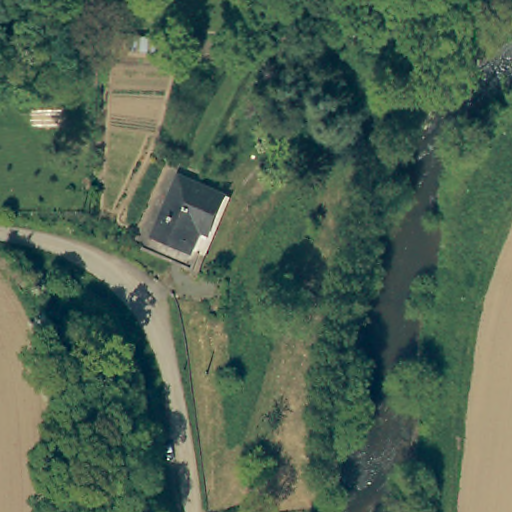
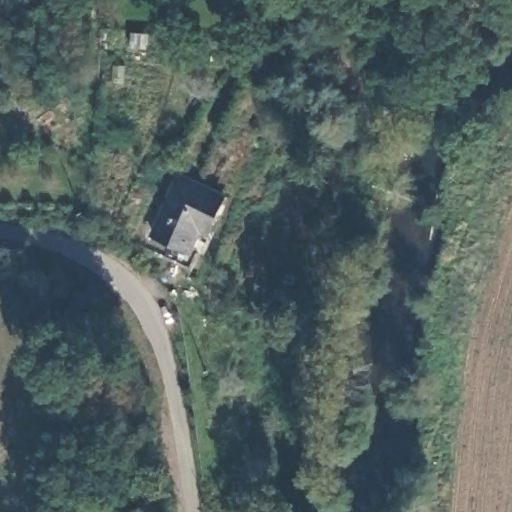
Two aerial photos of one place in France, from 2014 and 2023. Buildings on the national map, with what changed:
unchanged [(202,23),(202,36),(174,35),(173,21),(202,23)]
unchanged [(228,182),(198,258),(151,239),(180,164),(228,182)]

